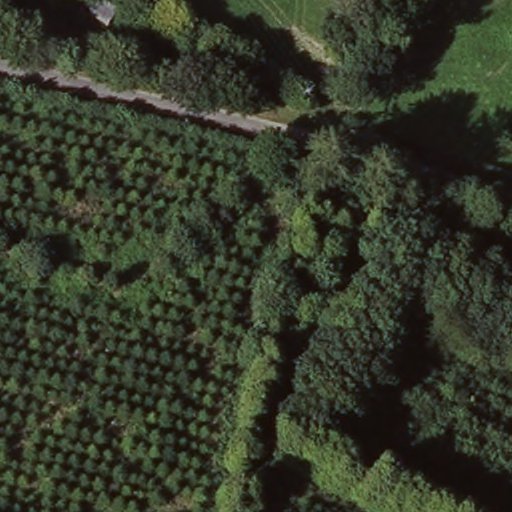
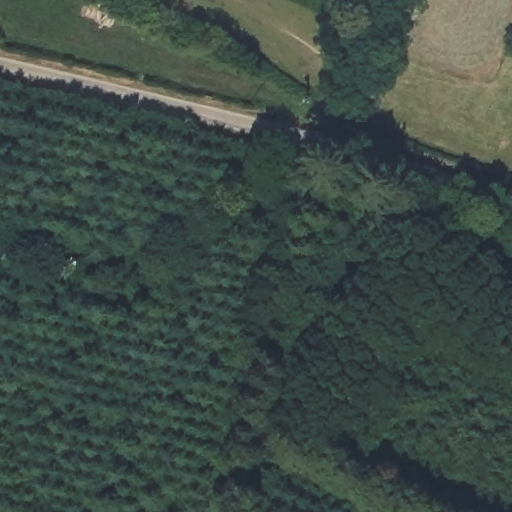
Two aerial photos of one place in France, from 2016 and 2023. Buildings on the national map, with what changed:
unchanged [(123,15),(116,34),(93,23),(101,4),(123,15)]

